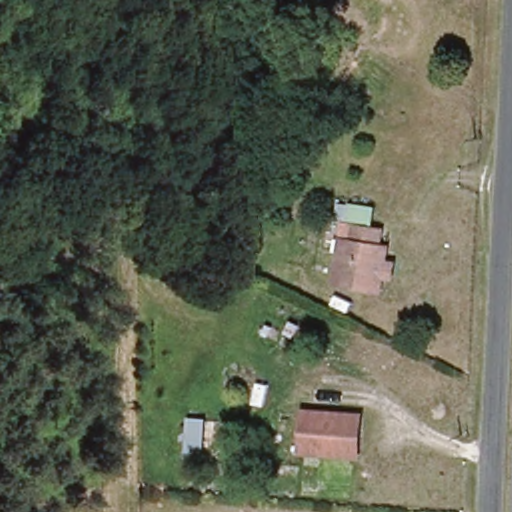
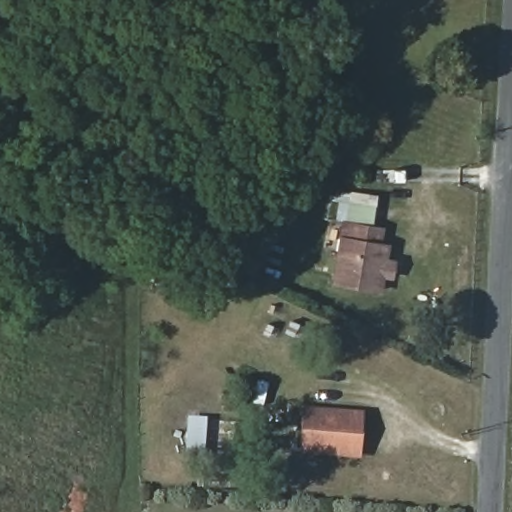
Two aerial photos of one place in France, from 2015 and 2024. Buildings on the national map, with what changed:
unchanged [(388,228),(380,281),(336,273),(353,190),(377,195),(374,225),(388,228)]
unchanged [(303,455),(303,411),(345,413),(363,413),(364,456),(345,456),(303,455)]

